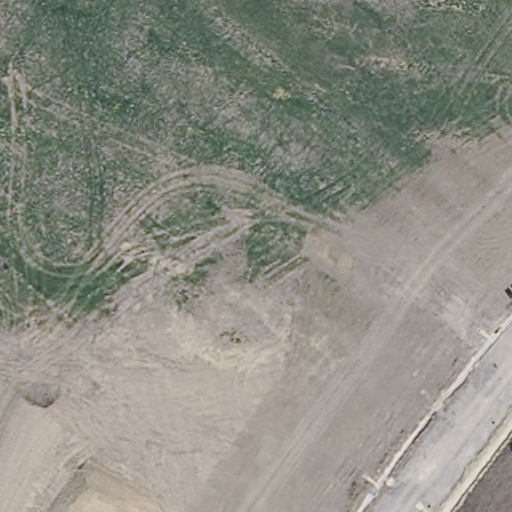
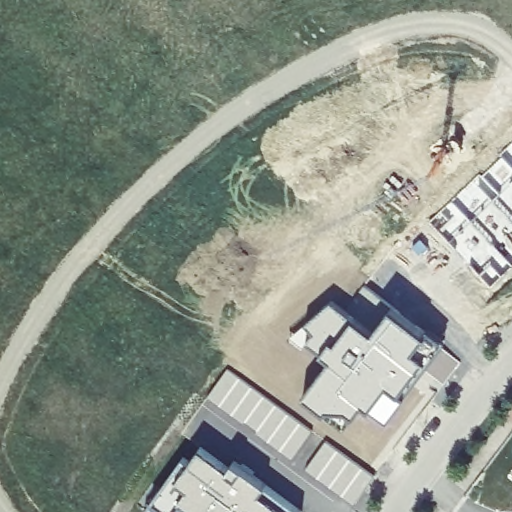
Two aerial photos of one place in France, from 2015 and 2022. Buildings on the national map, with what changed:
new [(512,170),(512,267),(490,288),(430,223),(502,158),(512,170)]
new [(328,306),(369,343),(387,319),(422,344),(409,361),(421,368),(396,403),(382,392),(365,417),(359,411),(350,424),(343,418),(322,418),(321,420),(300,403),(327,369),(317,363),(320,360),(303,350),(312,339),(304,328),(328,306)]
new [(238,474),(242,470),(303,512),(162,512),(150,504),(182,460),(189,465),(200,450),(238,474)]

